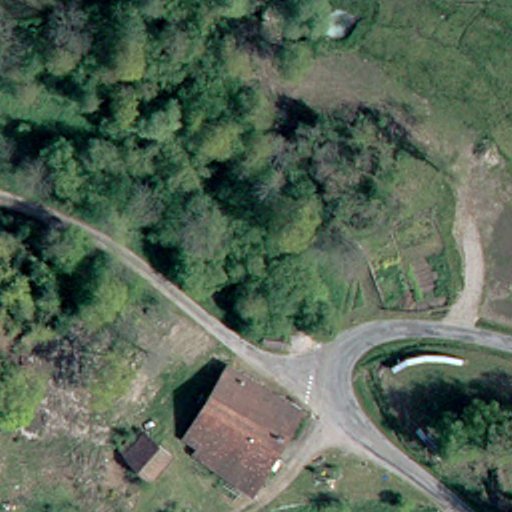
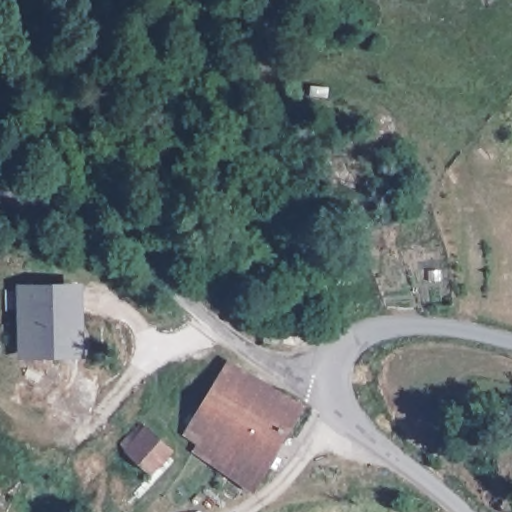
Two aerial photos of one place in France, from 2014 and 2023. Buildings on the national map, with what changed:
new [(84,358),(19,359),(18,283),(83,282),(84,358)]
unchanged [(265,308),(251,308),(250,296),(250,290),(265,290),(265,299),(265,308)]
unchanged [(191,417),(215,378),(230,353),(303,395),(255,480),(255,482),(200,440),(185,428),(191,417)]
unchanged [(175,445),(155,468),(154,468),(127,444),(147,422),(175,445)]

